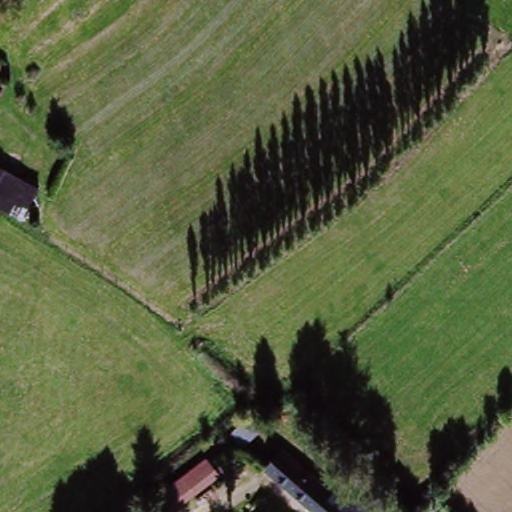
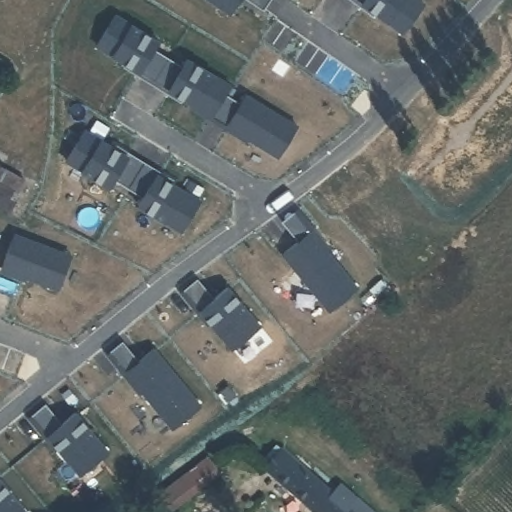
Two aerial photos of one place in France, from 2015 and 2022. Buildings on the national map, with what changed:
new [(239,0),(229,13),(211,0),(239,0)]
new [(364,0),(418,0),(423,4),(402,31),(363,2),(364,0)]
new [(97,43),(115,14),(157,41),(139,70),(97,43)]
new [(169,89),(188,59),(229,85),(211,114),(169,89)]
new [(226,124),(246,95),(296,126),(278,155),(226,124)]
new [(66,159),(85,130),(128,157),(109,186),(66,159)]
unchanged [(0,165),(40,187),(19,221),(0,210),(0,165)]
new [(137,204),(156,174),(200,199),(180,230),(137,204)]
new [(329,309),(284,252),(310,231),(356,288),(329,309)]
new [(3,267),(15,235),(70,256),(58,288),(3,267)]
new [(232,348),(201,310),(228,287),(258,325),(232,348)]
new [(173,427),(128,371),(154,349),(200,405),(173,427)]
new [(80,474),(48,436),(75,412),(108,452),(80,474)]
unchanged [(352,512),(314,512),(263,468),(278,451),(311,478),(352,512)]
unchanged [(219,473),(168,512),(161,512),(151,500),(166,487),(198,463),(206,457),(219,473)]
new [(0,481),(25,512),(0,512),(0,481)]

